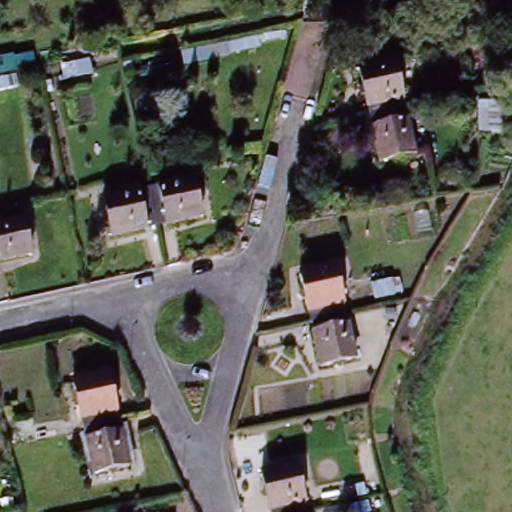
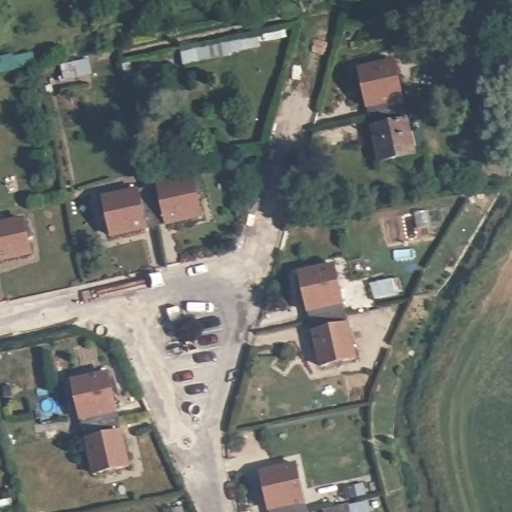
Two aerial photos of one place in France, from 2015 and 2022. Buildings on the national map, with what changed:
unchanged [(91,79),(60,87),(57,66),(88,56),(91,79)]
unchanged [(23,88),(0,93),(0,60),(20,57),(23,88)]
unchanged [(371,117),(359,69),(393,61),(406,110),(371,117)]
unchanged [(416,152),(382,160),(371,117),(406,110),(416,152)]
unchanged [(203,219),(153,229),(145,192),(193,181),(203,219)]
unchanged [(153,229),(108,239),(99,203),(145,192),(153,229)]
unchanged [(21,221),(30,256),(0,263),(0,226),(21,221)]
unchanged [(298,276),(334,268),(344,315),(309,323),(298,276)]
unchanged [(404,294),(355,309),(349,293),(399,280),(404,294)]
unchanged [(319,367),(309,323),(344,315),(354,359),(319,367)]
unchanged [(69,384),(104,376),(116,425),(81,433),(69,384)]
unchanged [(116,425),(127,468),(91,476),(81,433),(116,425)]
unchanged [(258,474),(294,467),(305,512),(266,512),(258,474)]
unchanged [(353,512),(326,512),(326,511),(352,505),(353,512)]

